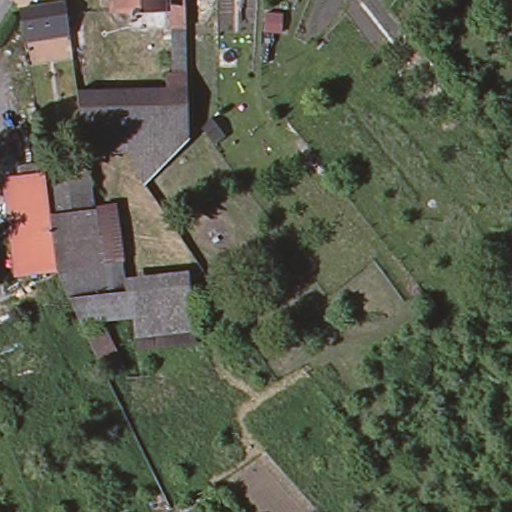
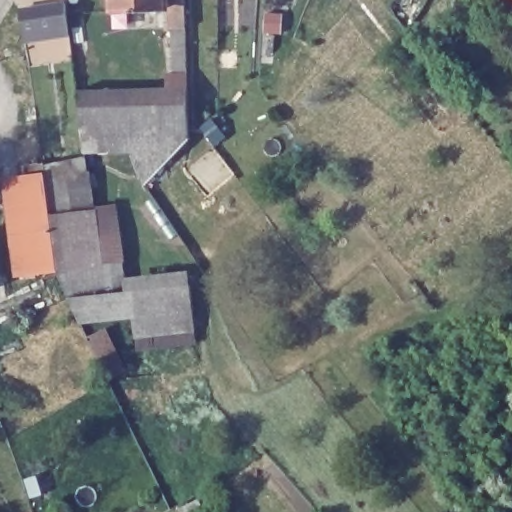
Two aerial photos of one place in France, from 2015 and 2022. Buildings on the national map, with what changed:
unchanged [(107,13),(107,0),(152,0),(152,10),(107,13)]
unchanged [(167,27),(165,0),(182,0),(182,28),(183,69),(170,69),(170,28),(167,27)]
unchanged [(66,1),(70,32),(70,33),(25,39),(20,9),(65,1),(66,1)]
unchanged [(107,93),(120,93),(163,91),(162,73),(183,73),(184,90),(185,134),(122,138),(108,138),(107,93)]
unchanged [(45,180),(55,269),(15,274),(5,200),(3,180),(22,178),(43,175),(45,180)]
unchanged [(90,175),(94,207),(117,204),(125,276),(188,274),(192,335),(132,336),(132,320),(77,323),(55,269),(45,180),(90,175)]
unchanged [(106,377),(84,337),(105,327),(127,369),(106,377)]

